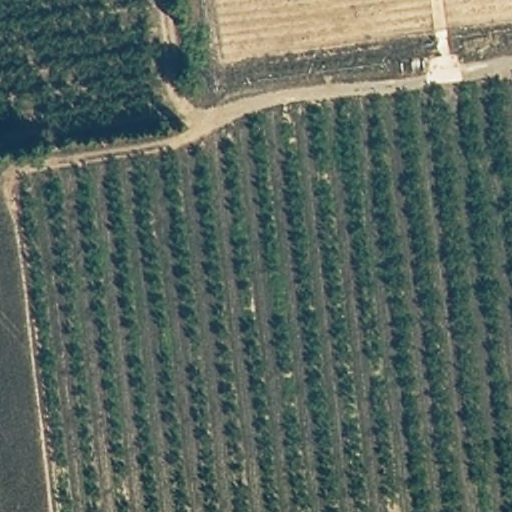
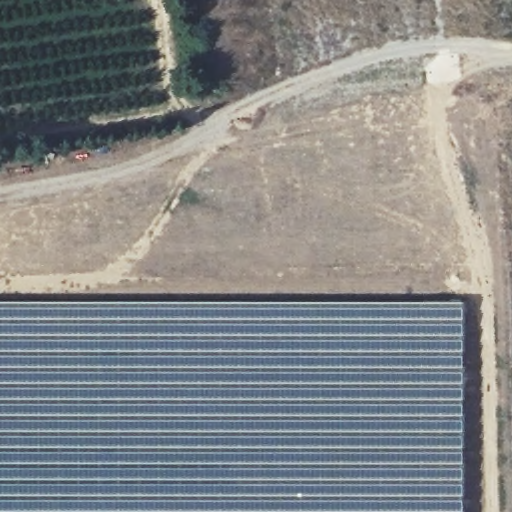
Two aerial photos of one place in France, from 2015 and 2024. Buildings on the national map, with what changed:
new [(0,512),(0,301),(462,302),(462,512),(0,512)]

